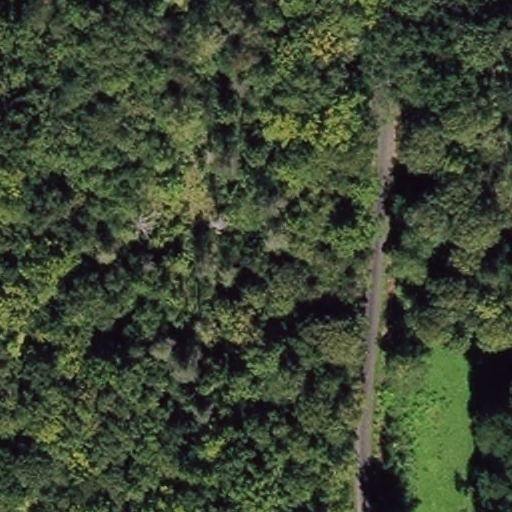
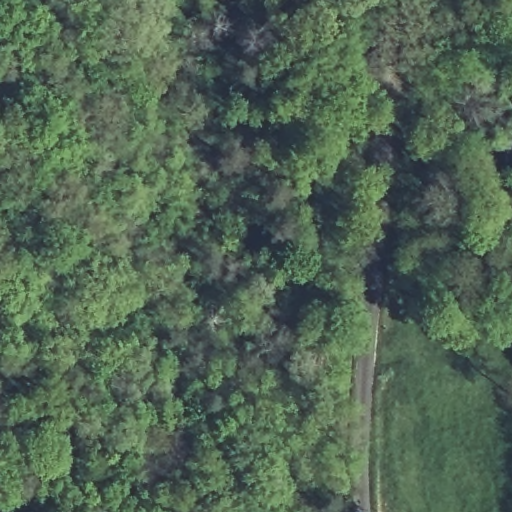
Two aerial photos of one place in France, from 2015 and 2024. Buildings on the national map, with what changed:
unchanged [(286,294),(289,315),(266,320),(264,297),(286,294)]

